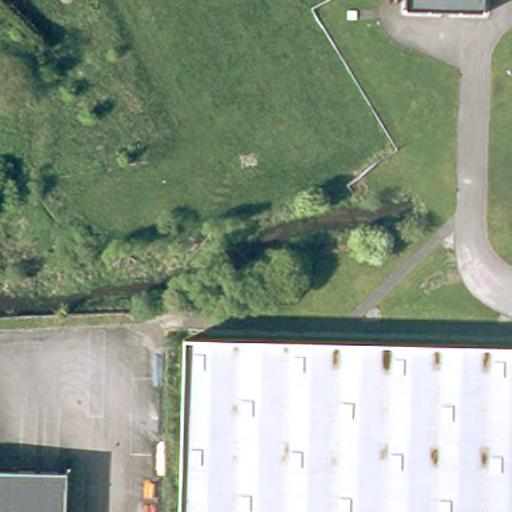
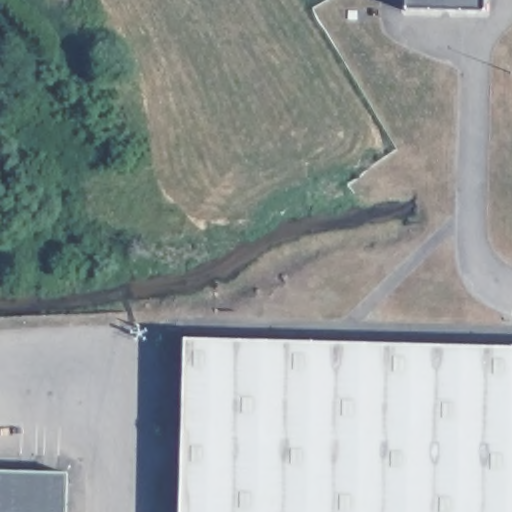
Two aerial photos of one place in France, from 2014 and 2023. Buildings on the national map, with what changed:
unchanged [(401,11),(401,0),(481,0),(481,12),(401,11)]
unchanged [(187,337),(512,346),(512,512),(180,512),(187,337)]
unchanged [(0,467),(65,468),(64,512),(0,512),(0,467)]

